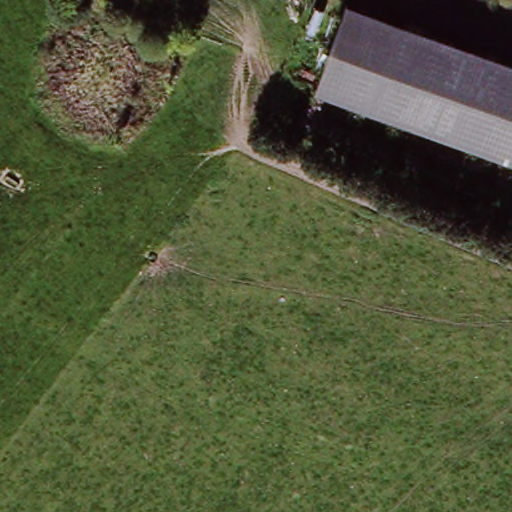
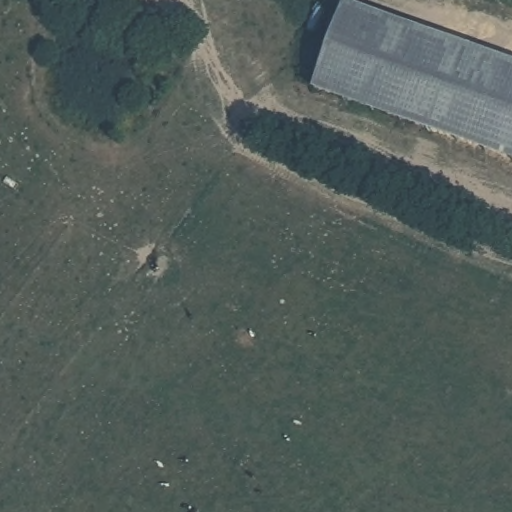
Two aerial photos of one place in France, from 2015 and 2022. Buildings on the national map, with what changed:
unchanged [(345,6),(512,71),(512,168),(312,90),(345,6)]

